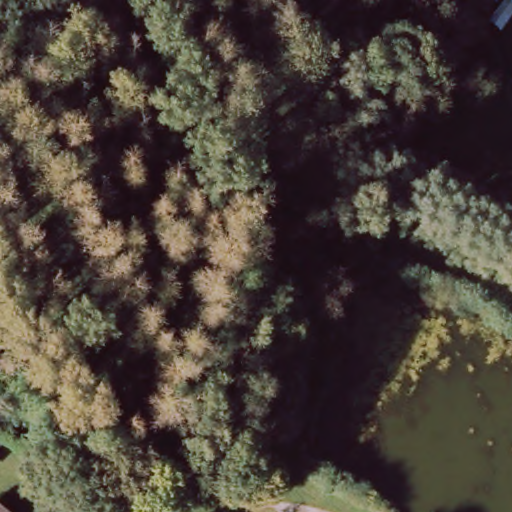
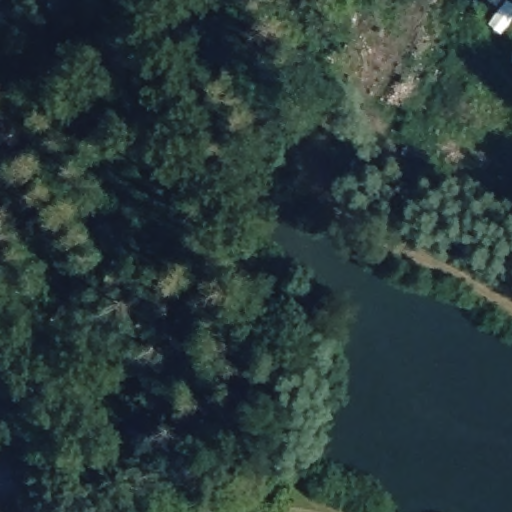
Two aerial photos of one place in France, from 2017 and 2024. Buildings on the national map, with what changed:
unchanged [(512,7),(512,22),(502,42),(486,31),(498,7),(489,0),(506,0),(505,1),(512,7)]

